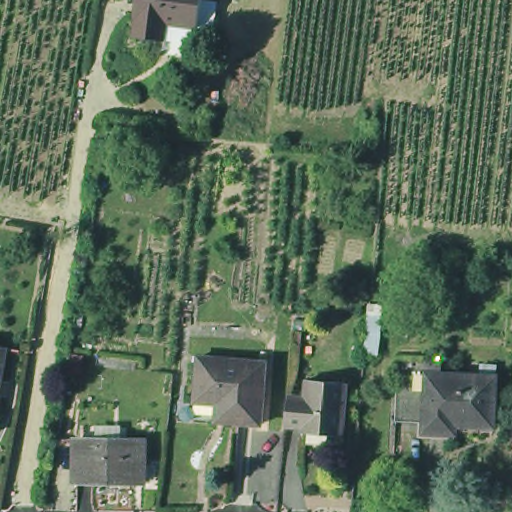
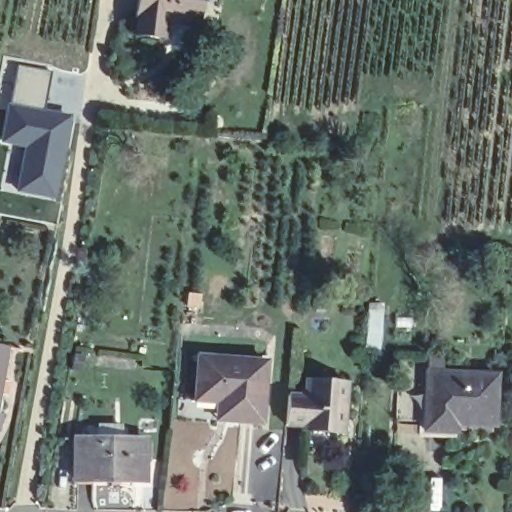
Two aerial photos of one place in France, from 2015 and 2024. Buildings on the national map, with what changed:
unchanged [(140,24),(140,19),(138,18),(140,0),(205,0),(201,27),(168,22),(167,27),(166,40),(138,36),(140,24)]
new [(18,64),(52,70),(44,109),(8,102),(18,64)]
new [(44,109),(75,115),(57,202),(15,193),(22,149),(0,144),(0,139),(8,102),(44,109)]
unchanged [(0,342),(3,342),(0,361),(0,342)]
unchanged [(217,397),(195,395),(200,347),(268,355),(261,418),(236,416),(216,413),(217,397)]
unchanged [(421,383),(430,381),(427,353),(452,353),(452,367),(507,370),(502,421),(462,417),(460,428),(424,424),(421,383)]
unchanged [(346,430),(307,427),(307,423),(290,422),(292,392),(309,393),(310,375),(350,377),(346,430)]
unchanged [(75,479),(75,437),(138,437),(144,437),(143,455),(143,480),(75,479)]

